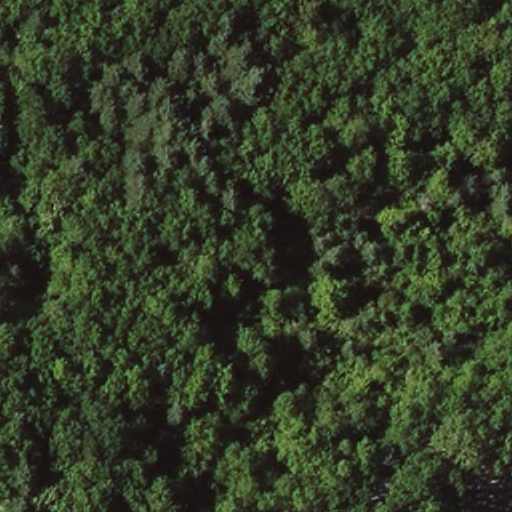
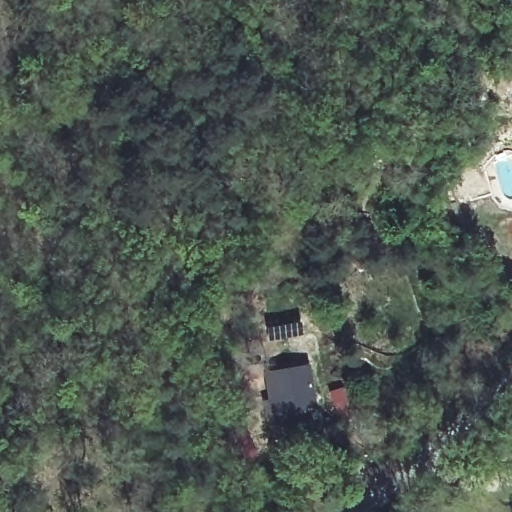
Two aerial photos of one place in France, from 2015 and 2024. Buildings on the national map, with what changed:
new [(267,403),(263,375),(303,368),(310,403),(310,406),(287,410),(270,414),(267,403)]

